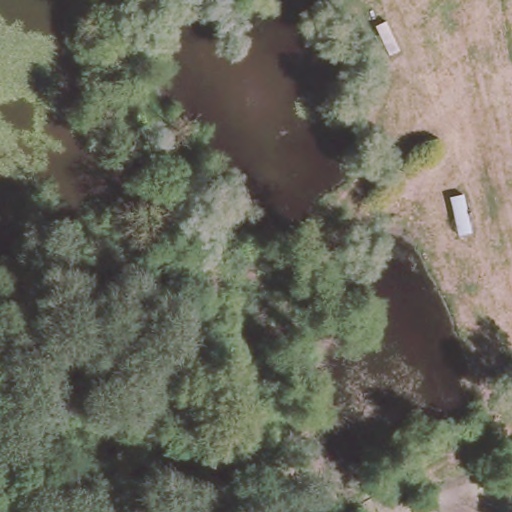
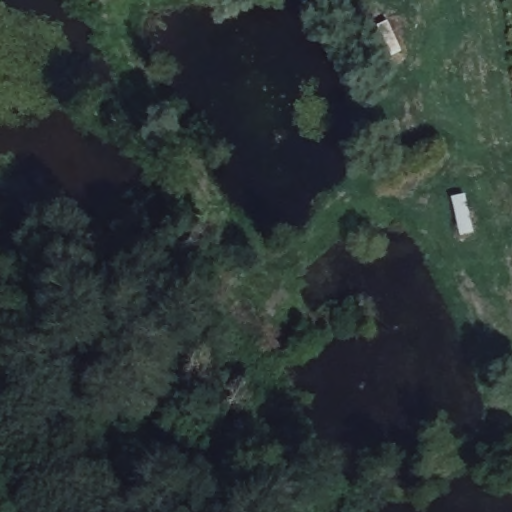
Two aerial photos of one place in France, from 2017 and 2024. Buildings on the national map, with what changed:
unchanged [(370,29),(386,19),(407,53),(395,60),(370,29)]
unchanged [(476,235),(457,242),(451,194),(469,192),(476,235)]
unchanged [(415,463),(430,459),(435,473),(417,476),(415,463)]

